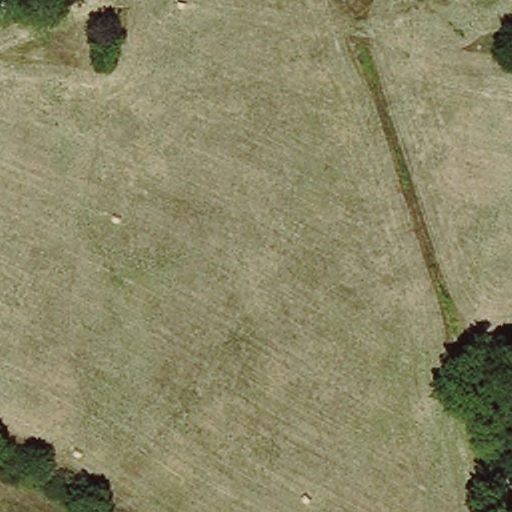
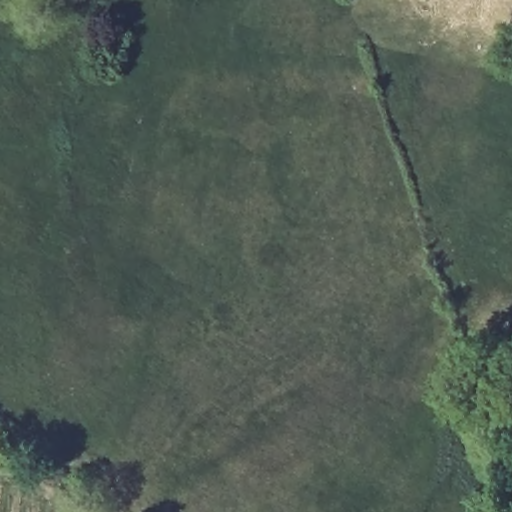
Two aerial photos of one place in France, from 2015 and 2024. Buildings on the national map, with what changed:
[]

